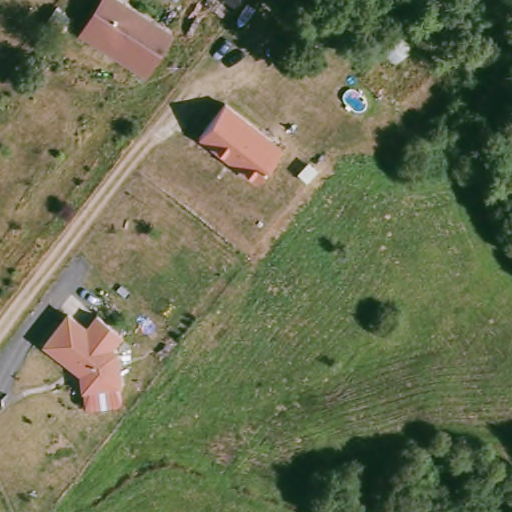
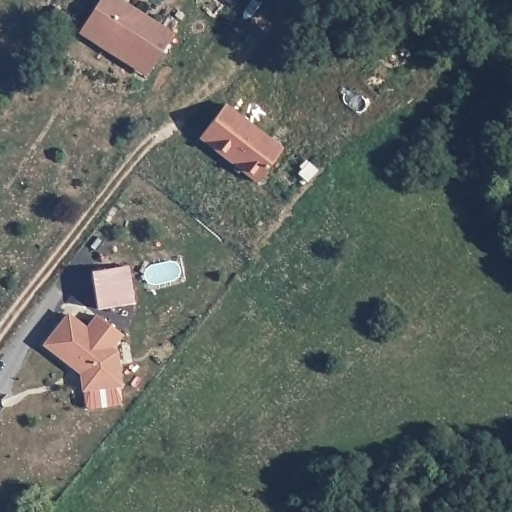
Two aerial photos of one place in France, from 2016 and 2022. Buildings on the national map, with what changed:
unchanged [(102,0),(119,0),(169,31),(146,68),(127,56),(98,39),(84,30),(102,0)]
unchanged [(223,103),(280,146),(254,180),(197,136),(223,103)]
new [(135,304),(97,309),(92,272),(130,266),(135,304)]
unchanged [(120,382),(82,386),(80,369),(44,340),(68,310),(86,325),(97,312),(122,331),(111,345),(116,348),(120,382)]

